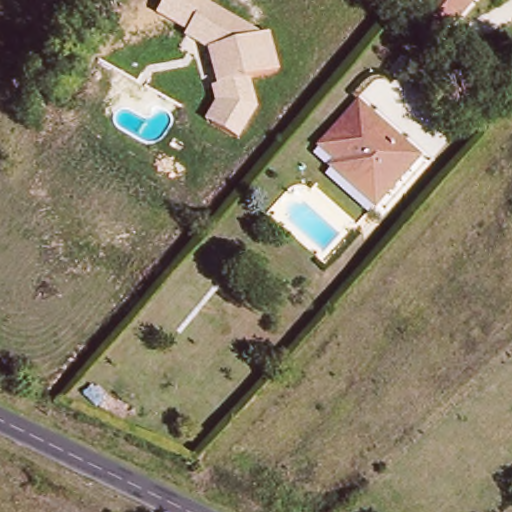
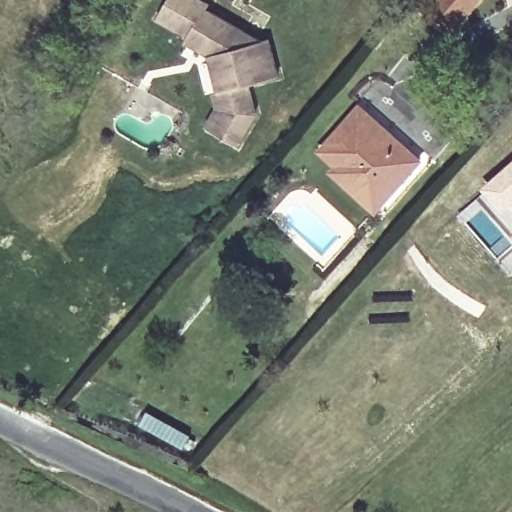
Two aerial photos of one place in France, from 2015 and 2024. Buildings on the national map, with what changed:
unchanged [(208,125),(217,107),(213,93),(219,90),(209,55),(187,42),(189,37),(159,20),(171,0),(210,0),(213,1),(210,8),(264,38),(272,36),(282,76),(254,83),(261,113),(242,145),(208,125)]
unchanged [(417,2),(418,0),(482,0),(453,36),(417,2)]
unchanged [(358,163),(333,141),(364,106),(424,161),(387,204),(369,187),(351,171),(358,163)]
new [(512,160),(512,233),(479,188),(512,160)]

